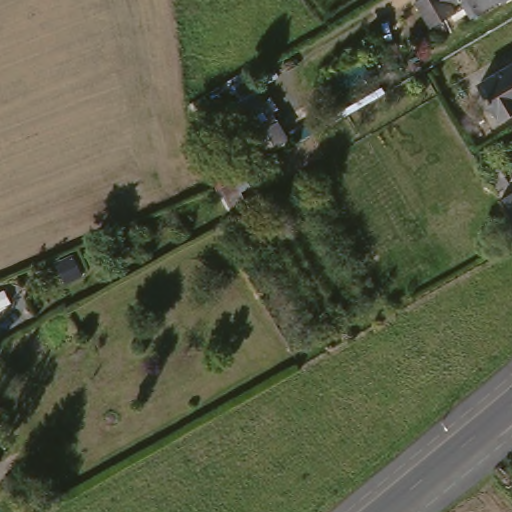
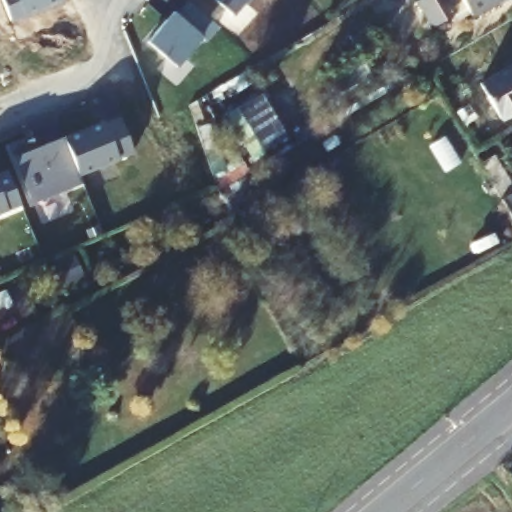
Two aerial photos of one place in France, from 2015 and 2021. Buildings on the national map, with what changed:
new [(62,0),(11,21),(3,0),(62,0)]
new [(173,11),(177,14),(189,0),(218,26),(206,40),(202,37),(177,67),(147,41),(166,20),(173,11)]
unchanged [(455,5),(460,14),(437,27),(421,1),(423,0),(465,0),(455,5)]
unchanged [(475,17),(466,0),(503,0),(475,17)]
unchanged [(507,1),(507,0),(508,0),(507,1)]
unchanged [(485,88),(512,73),(512,121),(506,125),(485,88)]
unchanged [(237,99),(271,79),(297,122),(273,136),(276,140),(264,147),(237,99)]
new [(110,120),(111,123),(126,116),(139,150),(79,174),(65,139),(110,120)]
new [(33,140),(37,149),(64,138),(65,139),(79,174),(83,183),(33,203),(11,149),(33,140)]
unchanged [(226,171),(225,166),(254,149),(259,157),(228,175),(226,171)]
new [(8,172),(21,204),(0,212),(0,175),(8,172)]
unchanged [(512,192),(512,216),(501,199),(512,192)]
unchanged [(0,467),(0,450),(7,464),(0,467)]

